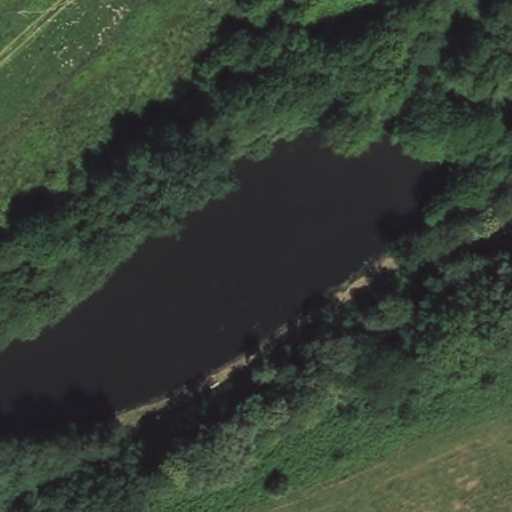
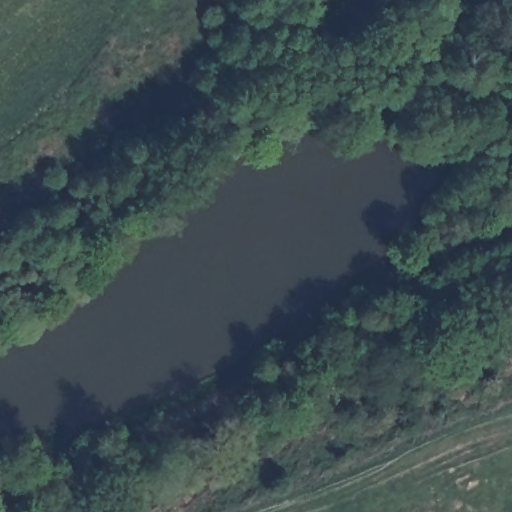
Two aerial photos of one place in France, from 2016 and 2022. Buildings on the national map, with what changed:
[]

